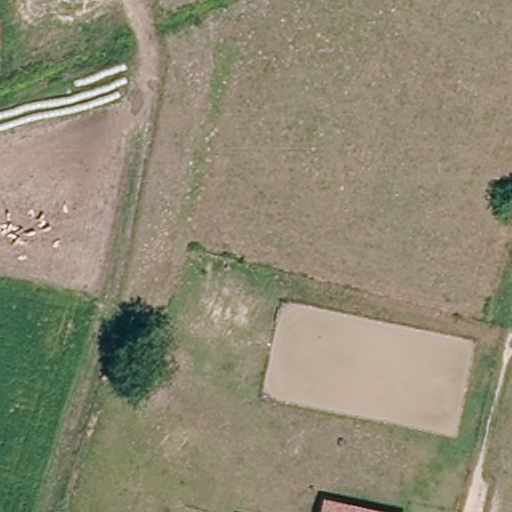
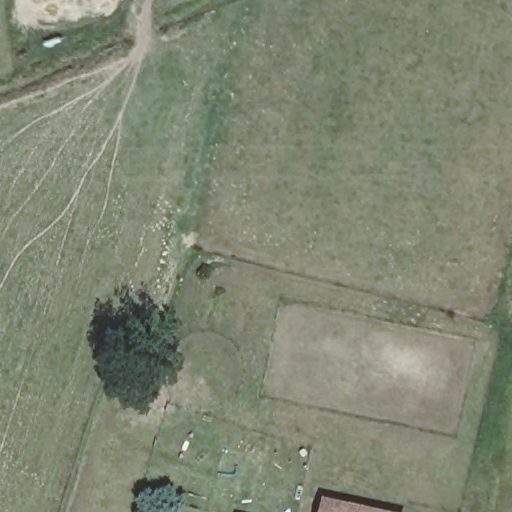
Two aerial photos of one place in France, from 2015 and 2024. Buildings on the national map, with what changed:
unchanged [(365,512),(327,512),(328,504),(365,512)]

